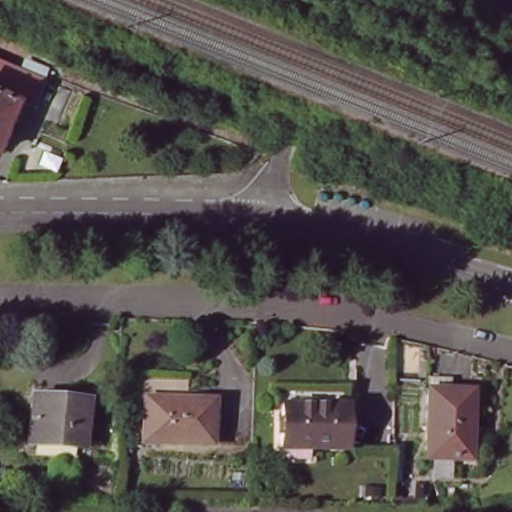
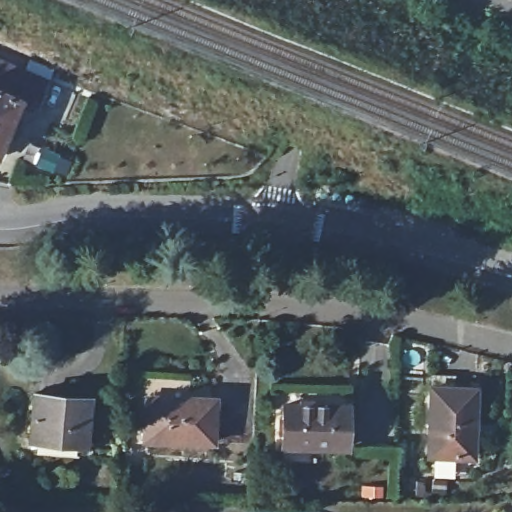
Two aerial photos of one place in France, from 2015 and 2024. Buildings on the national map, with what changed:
unchanged [(17,137),(7,160),(0,156),(0,60),(55,84),(43,110),(24,102),(17,117),(24,120),(17,137)]
unchanged [(450,376),(456,377),(456,387),(475,388),(474,437),(473,456),(430,455),(431,391),(432,376),(450,376)]
unchanged [(88,397),(85,442),(32,438),(35,393),(88,397)]
unchanged [(212,442),(145,439),(147,395),(214,397),(212,442)]
unchanged [(318,402),(347,402),(348,402),(347,447),(312,446),(283,446),(284,401),(318,402)]

